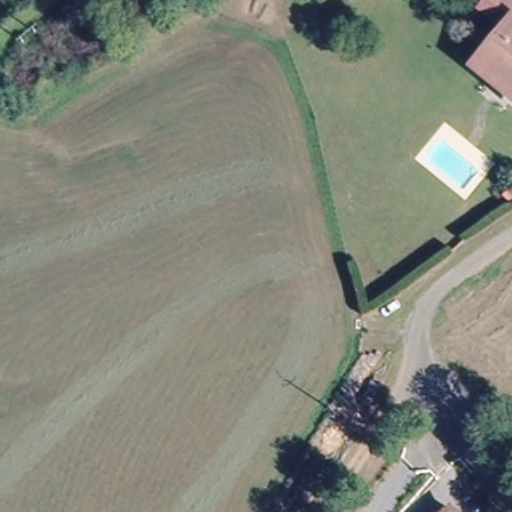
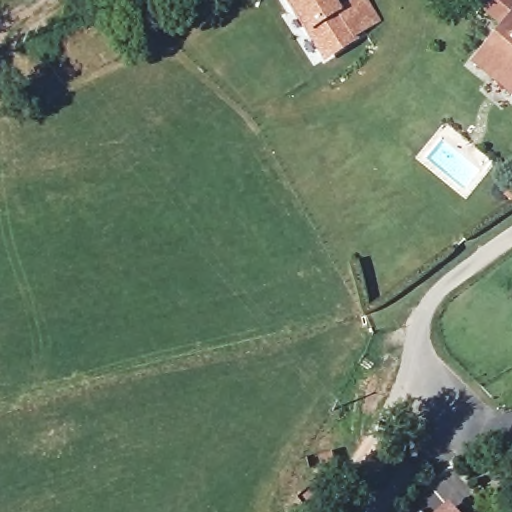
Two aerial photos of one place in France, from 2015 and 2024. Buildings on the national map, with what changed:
new [(352,0),(367,0),(381,23),(357,38),(359,41),(324,63),(283,0),(333,0),(339,9),(352,0)]
unchanged [(509,89),(474,61),(479,55),(505,23),(481,3),(483,0),(512,0),(512,92),(509,89)]

